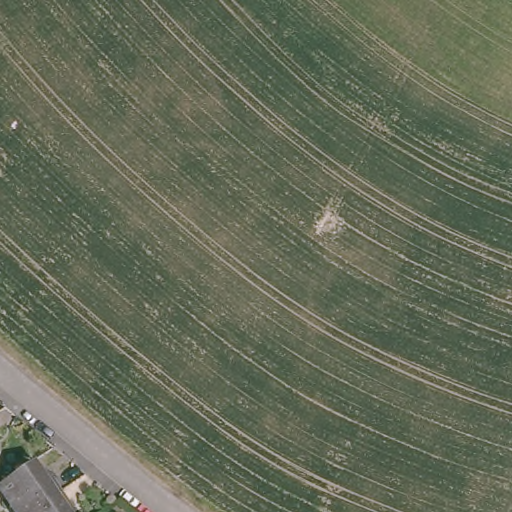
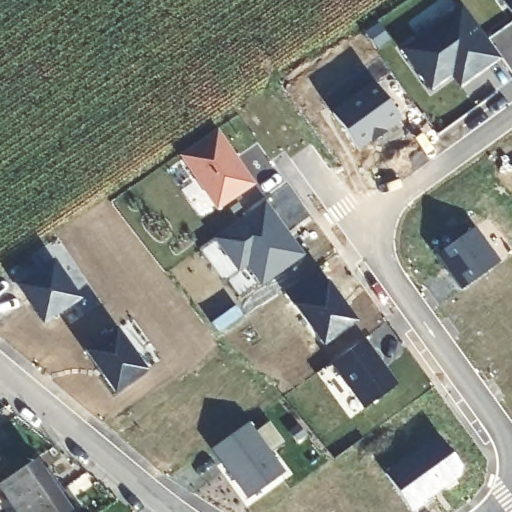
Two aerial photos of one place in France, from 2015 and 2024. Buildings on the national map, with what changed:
new [(512,14),(502,0),(512,0),(512,14)]
new [(450,77),(430,92),(400,49),(462,4),(502,59),(460,86),(450,77)]
new [(400,119),(361,148),(330,111),(372,80),(400,119)]
new [(217,129),(255,185),(216,210),(179,155),(217,129)]
new [(304,255),(262,286),(246,265),(238,271),(212,237),(264,202),(304,255)]
new [(498,261),(461,288),(436,255),(475,226),(498,261)]
new [(80,298),(42,325),(15,285),(53,260),(80,298)]
new [(356,321),(325,345),(292,305),(294,301),(286,290),(314,270),(325,286),(356,321)]
new [(147,370),(114,393),(83,350),(117,327),(147,370)]
new [(397,383),(362,408),(330,364),(365,338),(397,383)]
new [(279,463),(270,469),(276,476),(247,498),(212,450),(250,423),(279,463)]
new [(454,481),(412,511),(385,472),(437,434),(464,470),(454,481)]
unchanged [(37,459),(47,472),(52,470),(63,485),(25,511),(5,482),(37,459)]
unchanged [(74,501),(68,505),(73,512),(25,512),(25,511),(63,485),(74,501)]

